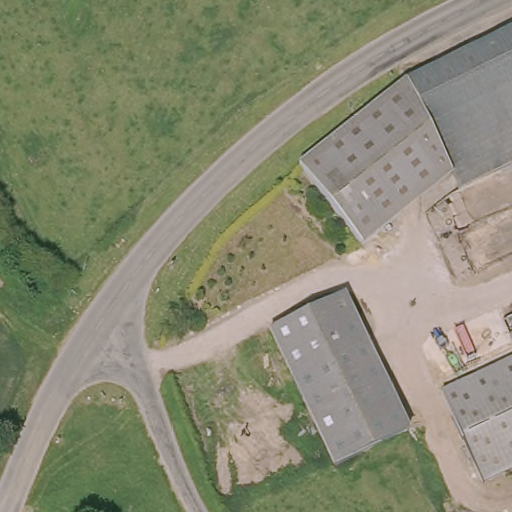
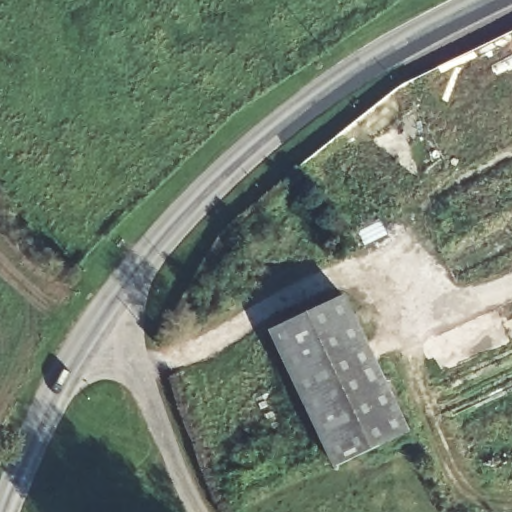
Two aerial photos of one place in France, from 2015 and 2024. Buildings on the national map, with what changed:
demolished [(407,80),(512,30),(512,165),(459,189),(453,175),(365,246),(300,165),(407,80)]
unchanged [(347,298),(410,432),(336,467),(274,332),(347,298)]
demolished [(507,351),(495,325),(512,317),(512,354),(508,356),(507,351)]

